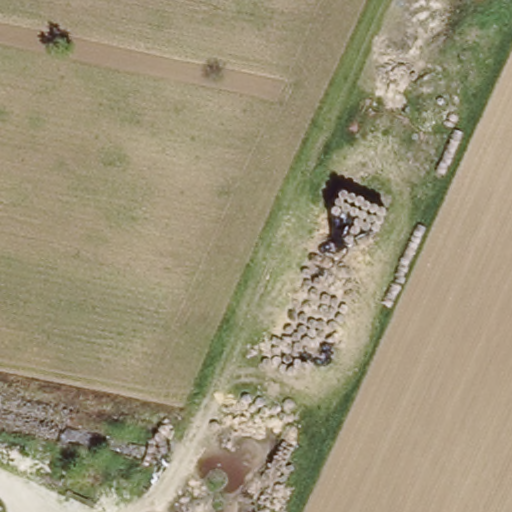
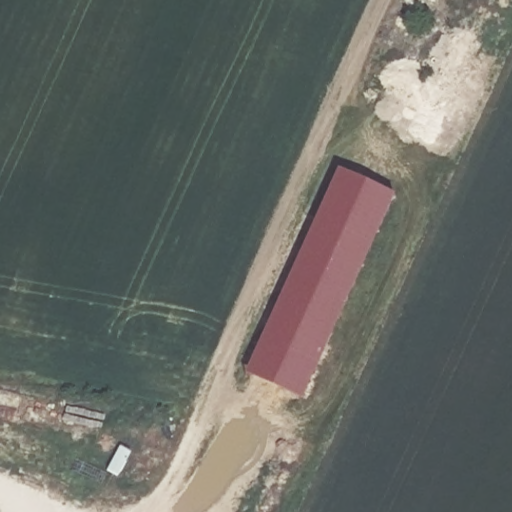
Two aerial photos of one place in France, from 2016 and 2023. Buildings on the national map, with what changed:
new [(339,173),(396,198),(303,402),(248,377),(339,173)]

